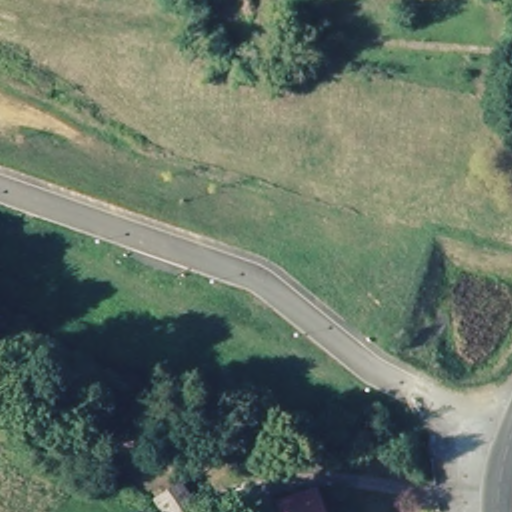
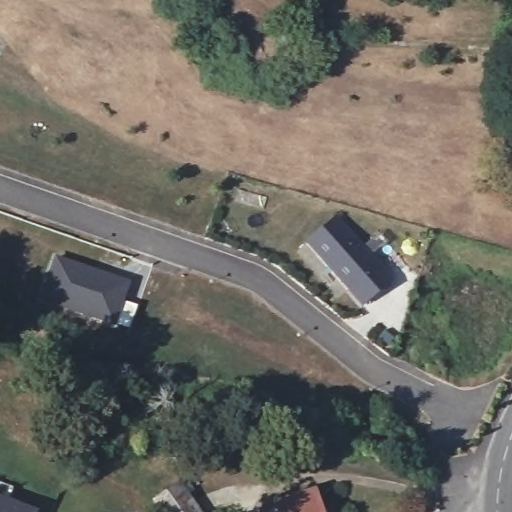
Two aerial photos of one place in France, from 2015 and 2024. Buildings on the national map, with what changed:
new [(337,216),(393,282),(362,307),(307,242),(337,216)]
new [(54,257),(90,271),(89,273),(96,276),(97,273),(125,282),(110,323),(39,298),(54,257)]
unchanged [(116,449),(120,427),(130,428),(145,432),(141,454),(136,453),(116,449)]
unchanged [(199,512),(162,512),(154,500),(180,482),(199,512)]
new [(37,512),(0,512),(0,491),(39,507),(37,512)]
unchanged [(317,491),(324,512),(283,512),(280,503),(317,491)]

